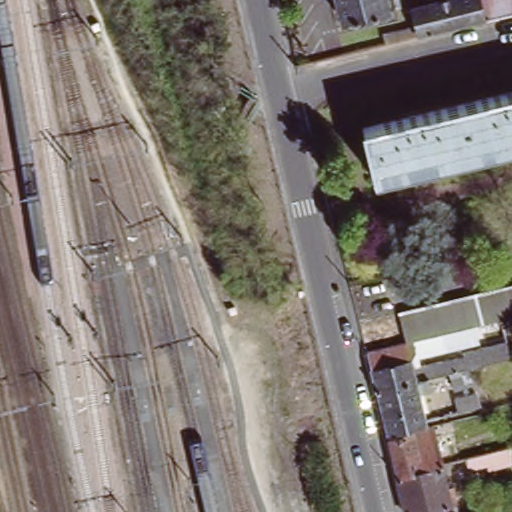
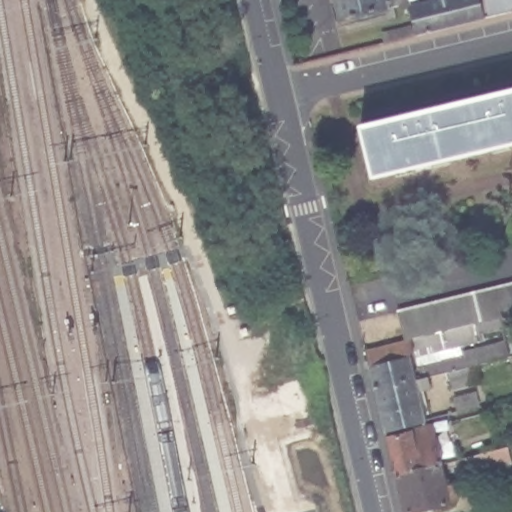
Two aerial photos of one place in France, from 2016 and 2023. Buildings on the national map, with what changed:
unchanged [(385,12),(342,23),(337,0),(396,0),(398,9),(385,12)]
unchanged [(455,0),(512,0),(512,15),(479,23),(420,36),(414,10),(455,0)]
unchanged [(361,128),(512,92),(512,145),(373,178),(361,128)]
unchanged [(464,325),(404,340),(397,311),(512,283),(512,313),(494,318),(464,325)]
unchanged [(428,377),(374,389),(364,349),(404,340),(464,325),(467,339),(415,352),(415,356),(410,357),(412,366),(448,358),(452,371),(467,367),(464,351),(500,342),(504,358),(475,365),(479,383),(464,387),(467,395),(475,393),(478,407),(459,412),(449,372),(428,377)]
unchanged [(384,430),(374,389),(428,377),(431,388),(419,391),(425,420),(384,430)]
unchanged [(412,430),(433,425),(439,447),(442,464),(441,465),(395,476),(385,437),(412,430)]
unchanged [(446,485),(452,484),(455,495),(449,497),(450,501),(404,512),(395,476),(441,465),(446,485)]

